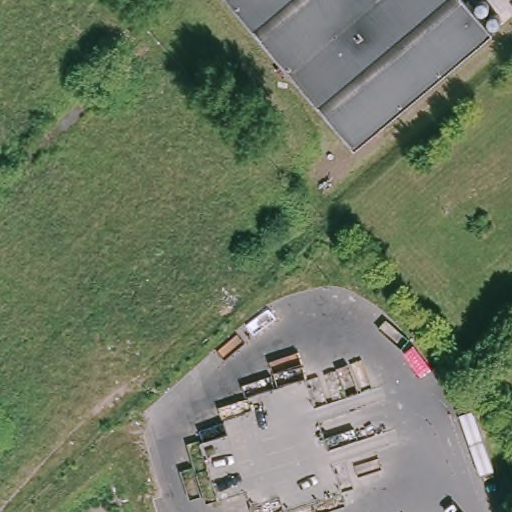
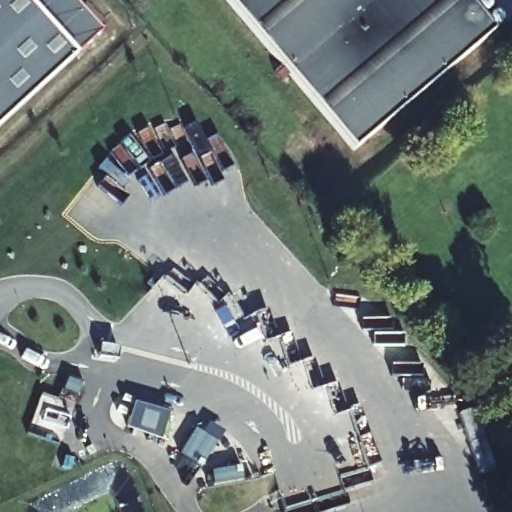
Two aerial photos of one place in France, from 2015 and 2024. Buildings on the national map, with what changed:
new [(0,116),(0,0),(73,0),(97,27),(0,116)]
unchanged [(352,152),(225,0),(461,0),(490,36),(352,152)]
new [(116,360),(112,360),(97,357),(99,345),(115,347),(118,347),(116,360)]
new [(133,405),(169,415),(160,442),(125,431),(133,405)]
new [(473,410),(494,471),(480,476),(458,415),(473,410)]

